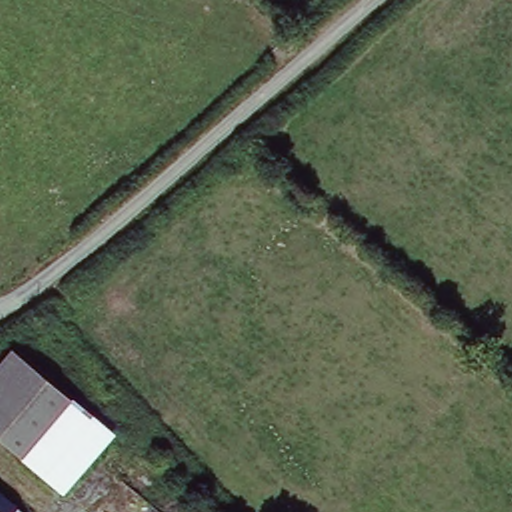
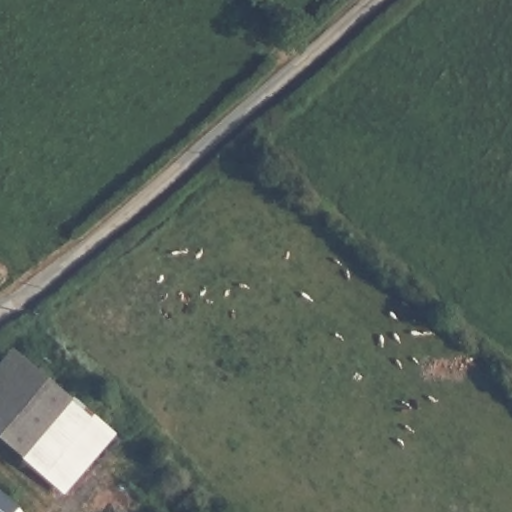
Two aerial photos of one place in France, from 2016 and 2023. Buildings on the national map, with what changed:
unchanged [(0,441),(0,358),(7,350),(110,435),(60,493),(0,441)]
unchanged [(40,505),(35,512),(0,512),(0,472),(6,477),(40,505)]

